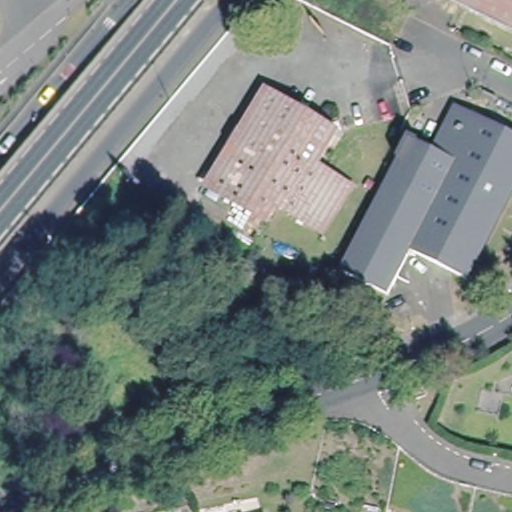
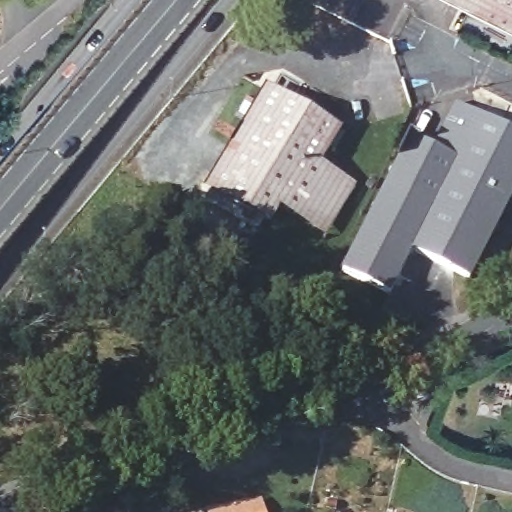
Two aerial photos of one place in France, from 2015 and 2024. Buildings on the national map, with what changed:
unchanged [(512,0),(512,31),(452,0),(512,0)]
unchanged [(283,114),(306,131),(296,144),(307,153),(277,195),(279,196),(267,211),(214,174),(280,84),(296,96),(283,114)]
unchanged [(297,210),(279,196),(277,195),(307,153),(296,144),(306,131),(283,114),(296,96),(341,130),(328,149),(320,143),(309,158),(333,176),(335,174),(353,188),(328,220),(322,229),(297,210)]
unchanged [(480,111),(512,129),(512,192),(469,273),(416,246),(393,289),(341,263),(412,133),(456,155),(480,111)]

